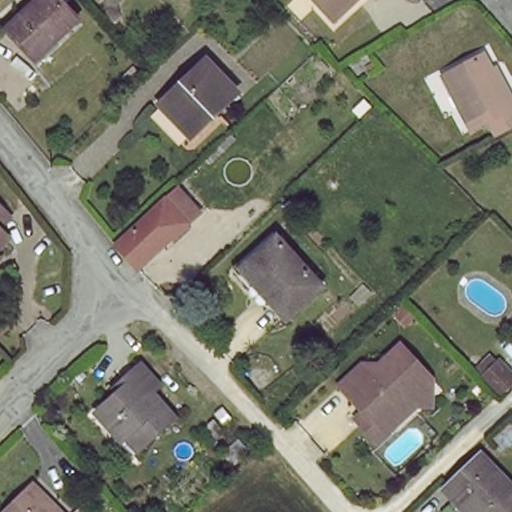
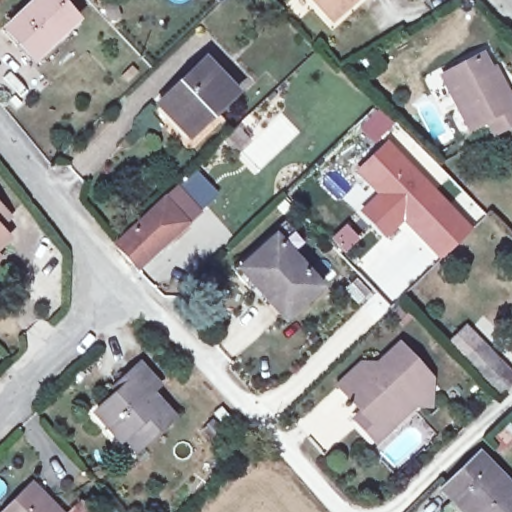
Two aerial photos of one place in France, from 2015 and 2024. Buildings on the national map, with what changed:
unchanged [(35,0),(56,0),(74,22),(33,57),(5,27),(35,0)]
unchanged [(328,14),(314,0),(355,0),(345,10),(334,21),(328,14)]
unchanged [(205,61),(236,94),(189,138),(158,106),(205,61)]
unchanged [(487,131),(491,129),(489,124),(469,135),(441,81),(482,61),(493,85),(498,82),(512,110),(512,131),(502,137),(493,142),(487,131)]
new [(389,143),(473,231),(440,265),(403,224),(387,241),(359,212),(377,195),(356,172),(389,143)]
unchanged [(112,247),(160,200),(174,185),(196,208),(182,222),(134,269),(112,247)]
unchanged [(0,218),(0,209),(5,214),(0,218)]
unchanged [(0,240),(0,232),(4,236),(0,240)]
unchanged [(277,239),(321,290),(284,322),(255,290),(251,293),(235,276),(277,239)]
new [(512,372),(512,386),(499,399),(462,361),(482,341),(512,372)]
unchanged [(355,429),(363,422),(338,396),(361,374),(373,387),(387,375),(387,366),(400,355),(431,388),(430,401),(395,434),(376,452),(355,429)]
unchanged [(122,388),(117,383),(137,367),(156,387),(148,393),(171,420),(139,447),(128,435),(118,443),(93,413),(122,388)]
unchanged [(221,418),(238,438),(229,447),(212,427),(221,418)]
unchanged [(472,512),(464,512),(443,489),(480,454),(512,489),(512,512),(474,512),(473,511),(472,512)]
unchanged [(62,512),(2,512),(31,485),(62,512)]
unchanged [(88,512),(73,512),(82,507),(88,512)]

